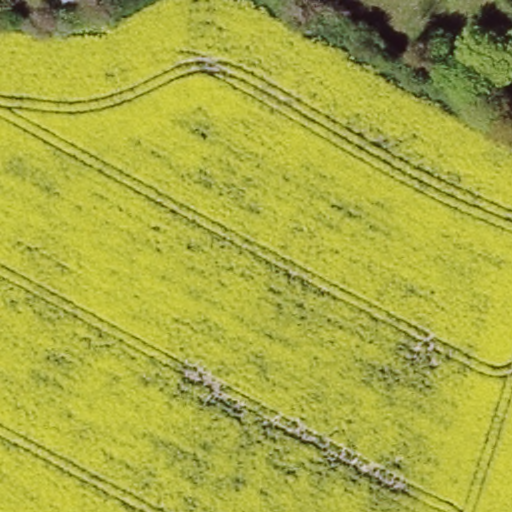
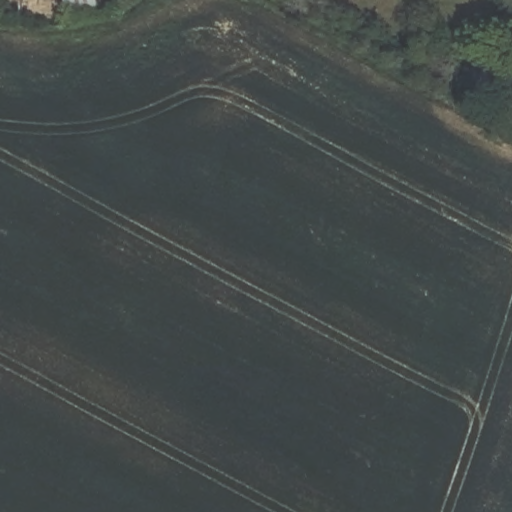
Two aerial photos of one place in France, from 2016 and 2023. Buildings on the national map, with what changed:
unchanged [(67,26),(62,27),(52,28),(49,0),(58,0),(67,26)]

